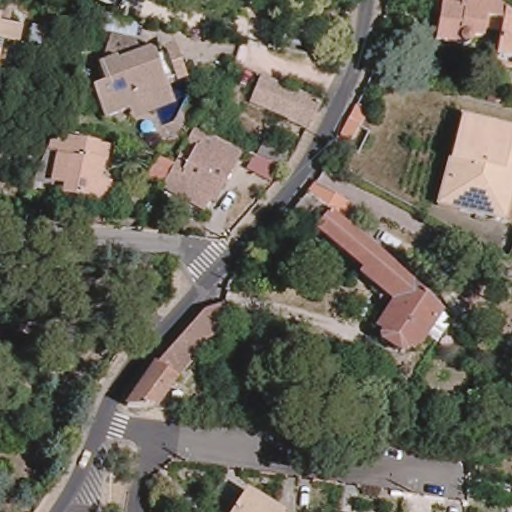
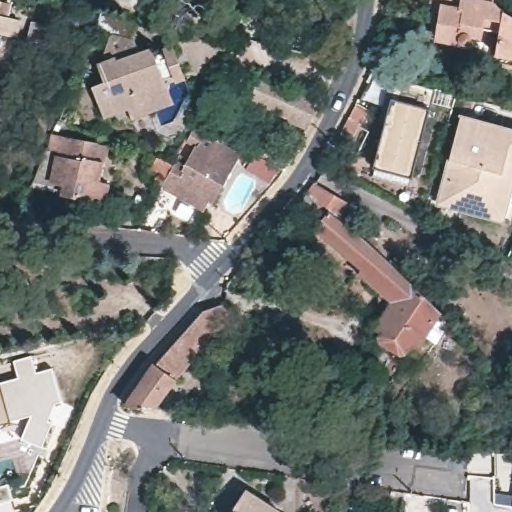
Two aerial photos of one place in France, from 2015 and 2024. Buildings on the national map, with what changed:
unchanged [(15,3),(12,17),(26,20),(21,38),(0,33),(0,0),(2,0),(6,1),(15,3)]
unchanged [(495,59),(497,49),(502,25),(487,24),(485,32),(475,30),(476,34),(475,37),(473,39),(470,40),(468,39),(465,36),(464,40),(441,35),(446,6),(438,2),(438,0),(493,0),(499,5),(508,10),(512,12),(512,62),(495,59)]
unchanged [(275,30),(298,32),(295,48),(273,45),(275,30)]
unchanged [(155,61),(166,58),(174,81),(163,85),(167,100),(127,112),(104,120),(95,90),(102,87),(96,67),(108,39),(134,42),(140,57),(153,55),(155,61)]
unchanged [(130,120),(127,112),(167,100),(163,85),(174,81),(166,58),(174,55),(189,102),(130,120)]
unchanged [(309,129),(288,120),(289,119),(251,102),(262,75),(323,100),(309,129)]
new [(380,117),(390,77),(396,79),(435,89),(412,174),(373,164),(385,119),(380,117)]
unchanged [(489,92),(503,96),(502,106),(487,102),(489,92)]
unchanged [(366,112),(347,151),(335,145),(355,105),(366,112)]
unchanged [(212,124),(201,119),(205,110),(216,116),(212,124)]
unchanged [(506,221),(441,204),(450,172),(465,117),(491,125),(512,130),(512,223),(506,221)]
unchanged [(43,181),(57,147),(61,147),(62,135),(69,120),(81,125),(76,137),(116,144),(107,200),(74,195),(40,189),(43,181)]
unchanged [(167,187),(168,185),(151,175),(162,156),(179,164),(184,155),(196,160),(203,147),(215,155),(222,142),(244,154),(218,200),(214,197),(208,209),(201,205),(167,187)]
unchanged [(423,357),(416,353),(411,360),(387,344),(391,337),(385,333),(396,318),(391,315),(389,300),(391,297),(369,278),(372,273),(335,242),(324,232),(327,228),(317,220),(305,233),(294,225),(317,197),(323,190),(325,191),(360,209),(351,225),(377,247),(399,268),(451,317),(461,327),(446,349),(434,341),(423,357)]
unchanged [(226,305),(237,313),(210,345),(170,393),(156,409),(131,407),(156,370),(208,310),(226,305)]
new [(12,360),(33,355),(37,370),(53,366),(62,399),(59,410),(43,450),(19,440),(26,420),(21,420),(10,422),(0,386),(0,381),(16,376),(12,360)]
new [(0,424),(0,386),(10,422),(0,424)]
unchanged [(231,512),(246,490),(279,512),(231,512)]

